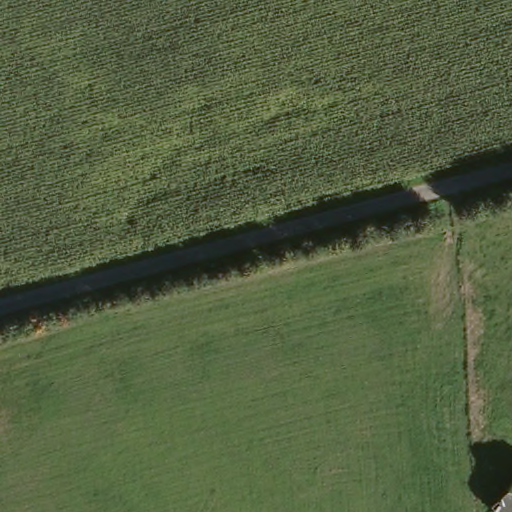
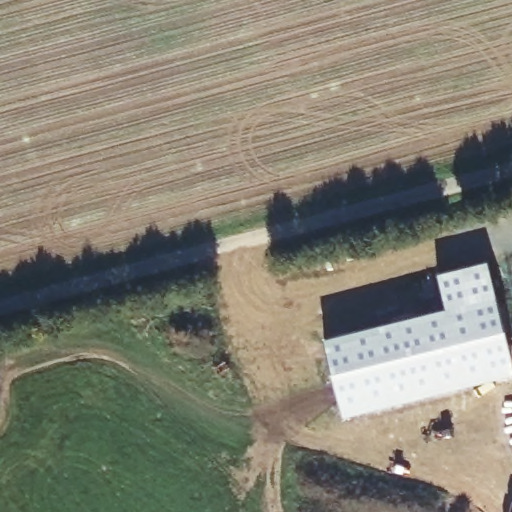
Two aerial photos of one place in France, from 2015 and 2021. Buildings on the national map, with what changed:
new [(445,310),(438,277),(488,265),(512,372),(512,377),(341,420),(324,342),(445,310)]
unchanged [(486,508),(512,485),(512,512),(489,512),(486,508)]

